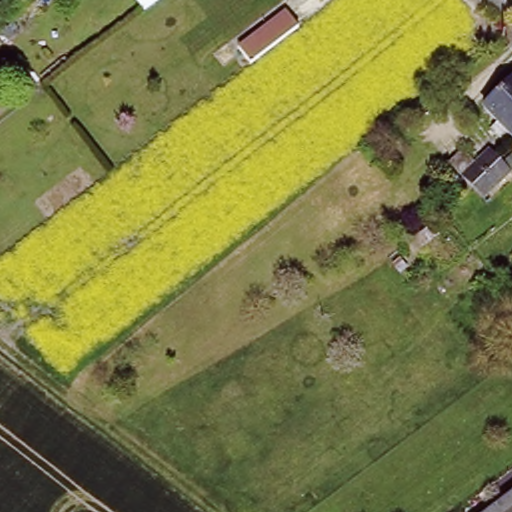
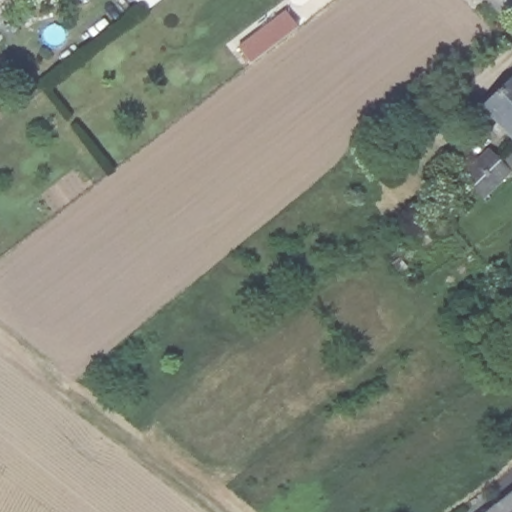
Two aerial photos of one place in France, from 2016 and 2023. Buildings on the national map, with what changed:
unchanged [(297,29),(250,66),(237,50),(285,12),(297,29)]
unchanged [(512,136),(509,134),(504,139),(495,129),(499,123),(485,109),(512,84),(512,136)]
unchanged [(476,189),(475,187),(464,177),(450,162),(463,151),(477,163),(491,151),(502,162),(512,172),(512,174),(486,199),(476,189)]
unchanged [(512,512),(483,512),(512,490),(512,512)]

